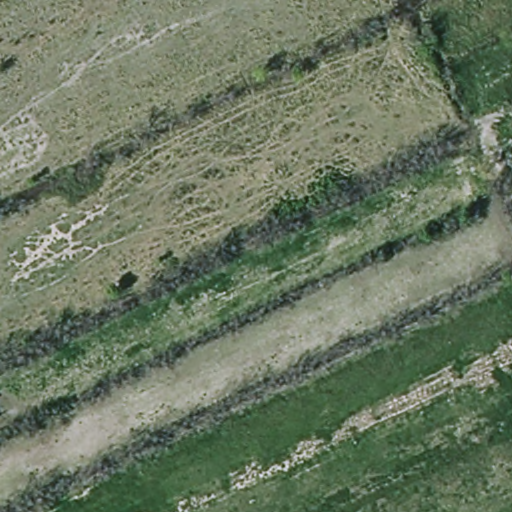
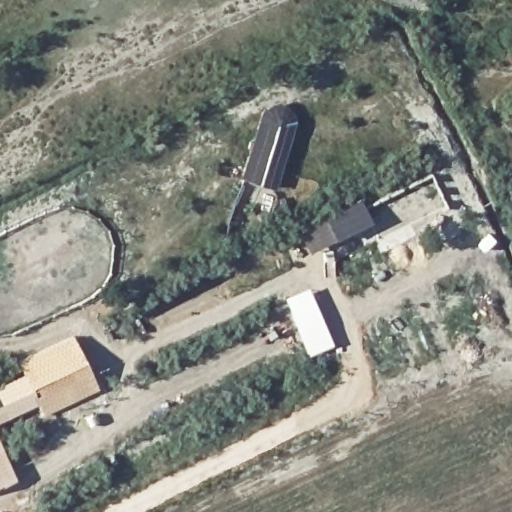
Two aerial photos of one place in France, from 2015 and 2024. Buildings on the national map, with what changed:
new [(295,125),(276,187),(241,177),(264,102),(282,107),(279,120),(295,125)]
new [(335,238),(309,252),(299,233),(324,217),(360,198),(371,220),(335,238)]
new [(307,352),(281,295),(307,284),(332,343),(307,352)]
new [(6,409),(0,397),(0,383),(23,371),(16,357),(71,332),(100,388),(42,415),(36,402),(0,420),(0,412),(6,409)]
unchanged [(6,409),(0,412),(0,397),(6,409)]
new [(16,479),(0,486),(0,446),(16,479)]

